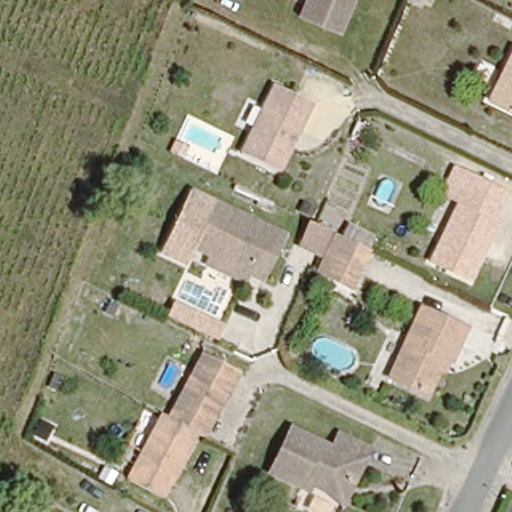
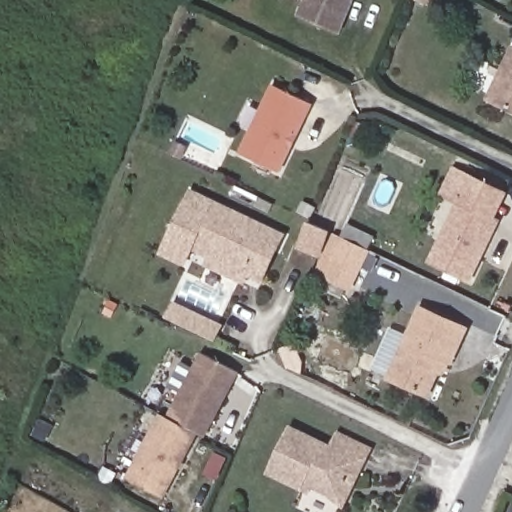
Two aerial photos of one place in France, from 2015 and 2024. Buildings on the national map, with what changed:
unchanged [(295,16),(301,0),(349,0),(337,31),(295,16)]
unchanged [(406,0),(413,0),(411,2),(406,0)]
unchanged [(512,48),(512,107),(490,97),(512,48)]
unchanged [(270,80),(308,98),(293,130),(290,128),(284,141),(289,143),(277,168),(237,150),(270,80)]
unchanged [(500,186),(489,211),(502,216),(473,279),(434,261),(473,174),(500,186)]
unchanged [(243,263),(188,238),(202,208),(271,240),(264,257),(258,269),(243,263)]
unchanged [(359,289),(334,278),(322,273),(338,235),(349,241),(374,252),(359,289)]
unchanged [(438,367),(427,390),(390,372),(419,307),(466,328),(453,359),(447,371),(438,367)]
unchanged [(156,408),(163,412),(197,348),(231,366),(196,432),(190,429),(156,494),(120,475),(156,408)]
unchanged [(326,491),(310,479),(307,486),(266,468),(287,421),(329,440),(334,429),(367,445),(360,460),(340,501),(326,491)]

